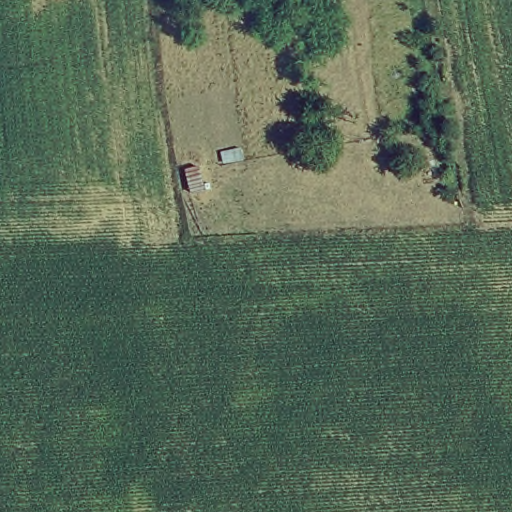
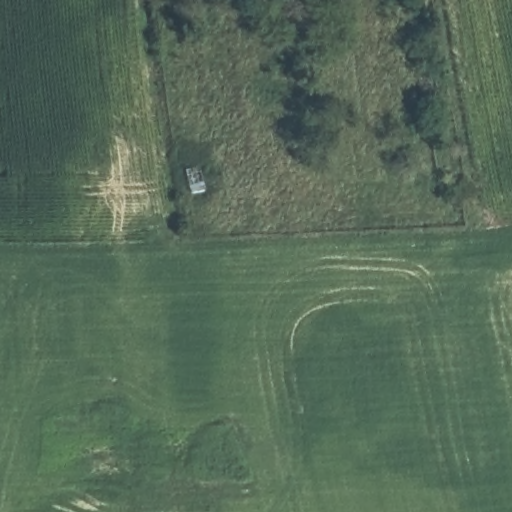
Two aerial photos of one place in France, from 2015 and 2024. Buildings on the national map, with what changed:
unchanged [(204,167),(206,196),(186,200),(183,169),(204,167)]

